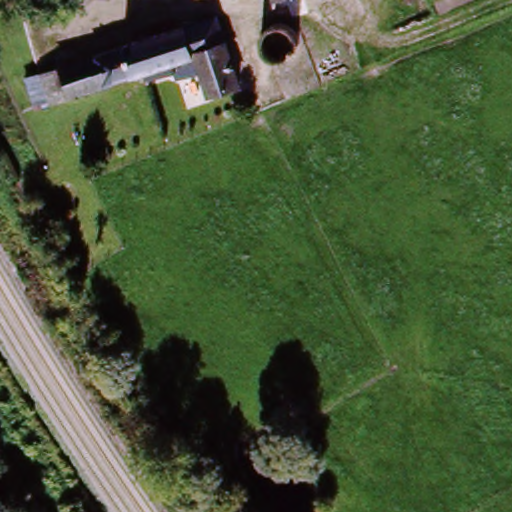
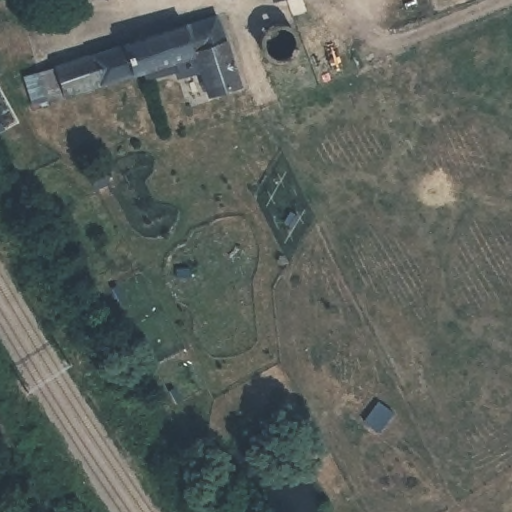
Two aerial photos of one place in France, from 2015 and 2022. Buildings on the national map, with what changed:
unchanged [(282,6),(280,0),(300,0),(282,6)]
unchanged [(167,73),(170,79),(146,88),(142,76),(133,79),(102,89),(92,60),(214,17),(241,85),(207,97),(196,72),(182,78),(179,68),(167,73)]
unchanged [(267,58),(263,46),(263,38),(271,31),(282,29),(298,35),(297,57),(280,66),(267,58)]
unchanged [(102,89),(74,99),(72,100),(37,112),(27,83),(92,60),(102,89)]

